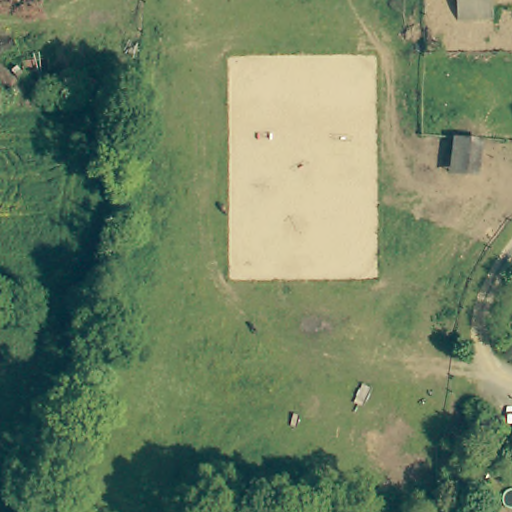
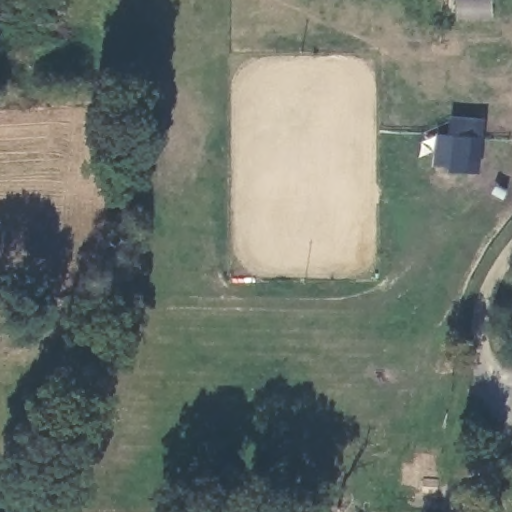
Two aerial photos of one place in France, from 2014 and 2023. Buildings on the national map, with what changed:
unchanged [(483,135),(485,170),(455,171),(453,136),(483,135)]

